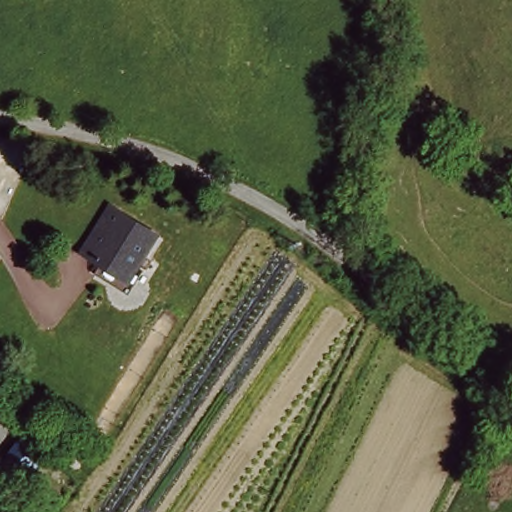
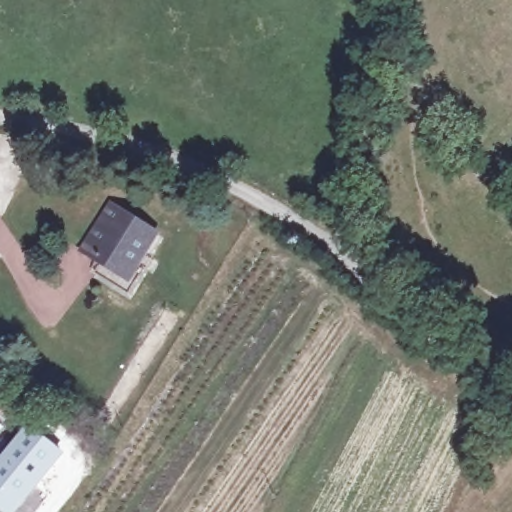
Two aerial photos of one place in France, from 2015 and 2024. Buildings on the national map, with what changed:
unchanged [(156,240),(143,262),(138,258),(123,278),(87,254),(115,212),(156,240)]
new [(30,426),(41,413),(77,442),(66,455),(21,512),(3,512),(0,509),(0,463),(30,426)]
demolished [(31,429),(55,444),(37,477),(14,460),(31,429)]

